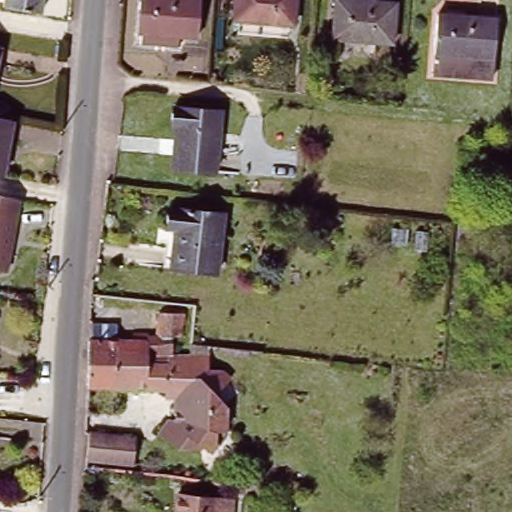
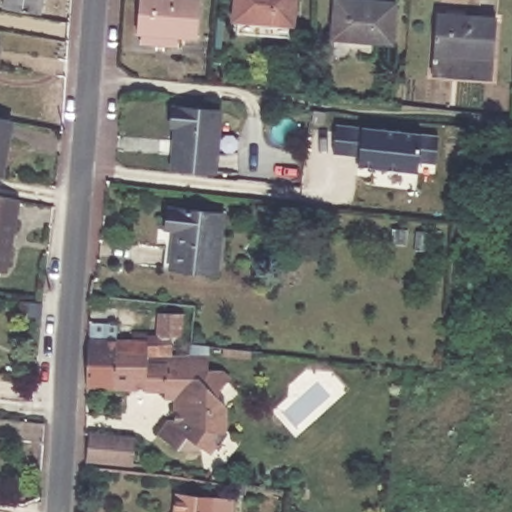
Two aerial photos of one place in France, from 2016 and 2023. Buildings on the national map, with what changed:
unchanged [(45,0),(42,23),(5,17),(8,0),(45,0)]
unchanged [(167,0),(194,3),(191,42),(132,36),(135,0),(167,0)]
unchanged [(230,14),(231,0),(289,0),(286,31),(235,26),(236,14),(230,14)]
unchanged [(388,54),(337,49),(338,38),(333,37),(336,0),(347,0),(396,4),(393,43),(389,42),(388,54)]
unchanged [(439,14),(498,20),(494,59),(435,54),(439,14)]
unchanged [(209,164),(166,160),(170,119),(167,118),(169,99),(217,105),(209,164)]
unchanged [(0,174),(0,119),(13,121),(3,175),(0,174)]
new [(435,164),(418,162),(418,173),(358,165),(359,153),(334,153),(336,125),(363,128),(362,128),(420,134),(438,136),(435,164)]
unchanged [(20,200),(7,273),(0,271),(0,196),(20,200)]
unchanged [(225,211),(218,269),(218,271),(173,264),(177,227),(168,225),(171,203),(215,209),(225,211)]
unchanged [(118,321),(118,336),(148,337),(148,330),(157,331),(158,310),(184,312),(182,335),(172,335),(172,351),(190,351),(190,343),(209,344),(209,367),(224,368),(232,374),(219,389),(219,397),(229,406),(228,430),(211,454),(205,450),(181,452),(157,431),(168,417),(173,417),(173,397),(164,396),(164,389),(87,385),(90,319),(118,321)]
unchanged [(133,443),(130,471),(82,466),(84,441),(85,437),(133,443)]
unchanged [(175,489),(231,496),(229,512),(172,512),(175,489)]

